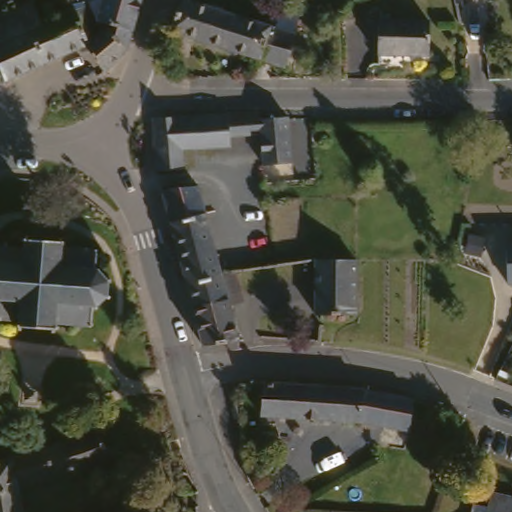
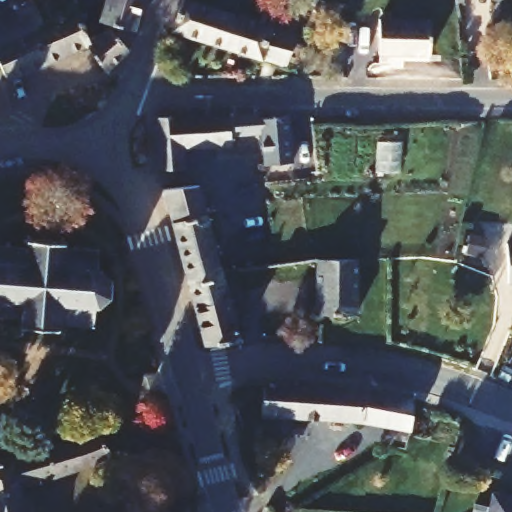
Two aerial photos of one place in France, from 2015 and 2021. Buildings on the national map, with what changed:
unchanged [(34,0),(36,5),(46,1),(50,0),(64,0),(65,1),(86,43),(90,49),(9,88),(0,66),(0,16),(34,0)]
unchanged [(86,43),(65,1),(66,0),(146,0),(142,17),(136,41),(105,30),(86,43)]
unchanged [(276,9),(280,0),(307,0),(315,4),(304,21),(287,40),(275,70),(164,37),(173,14),(186,6),(263,30),(276,9)]
unchanged [(379,26),(429,29),(429,60),(378,59),(379,26)]
unchanged [(133,56),(127,61),(122,64),(105,78),(90,49),(86,43),(105,30),(136,41),(133,56)]
unchanged [(254,120),(277,112),(282,112),(291,160),(263,166),(254,120)]
unchanged [(184,120),(230,117),(254,115),(254,120),(253,126),(252,129),(229,131),(228,142),(184,145),(184,120)]
unchanged [(184,145),(183,169),(156,171),(150,171),(147,122),(184,120),(184,145)]
unchanged [(200,187),(208,217),(173,229),(161,190),(200,187)]
unchanged [(223,278),(230,305),(197,311),(173,229),(208,217),(223,278)]
unchanged [(29,246),(29,236),(67,240),(66,245),(97,249),(96,261),(95,267),(108,284),(107,304),(92,308),(91,328),(59,325),(59,330),(20,327),(21,315),(0,314),(0,244),(29,246)]
unchanged [(507,242),(512,243),(512,284),(507,284),(507,242)]
unchanged [(322,278),(287,277),(287,264),(324,263),(366,262),(350,317),(324,310),(316,308),(322,278)]
unchanged [(239,345),(207,344),(197,311),(230,305),(239,345)]
unchanged [(363,426),(262,418),(263,386),(365,394),(363,426)]
unchanged [(363,426),(365,394),(366,392),(414,405),(412,411),(406,434),(363,426)]
unchanged [(18,492),(22,512),(0,512),(0,455),(59,437),(89,428),(111,456),(18,492)]
unchanged [(153,448),(171,445),(178,478),(158,471),(153,448)]
unchanged [(204,487),(204,495),(195,493),(196,485),(204,487)]
unchanged [(497,501),(512,504),(512,512),(495,512),(497,501)]
unchanged [(480,511),(485,512),(479,512),(480,511)]

